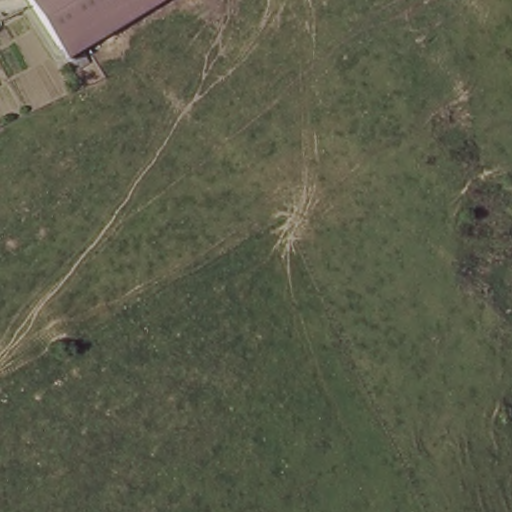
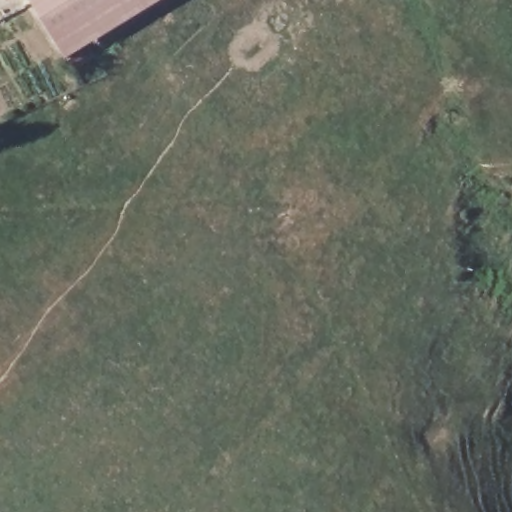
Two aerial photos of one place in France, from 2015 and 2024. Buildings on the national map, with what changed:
unchanged [(39,0),(143,0),(108,23),(69,46),(39,0)]

